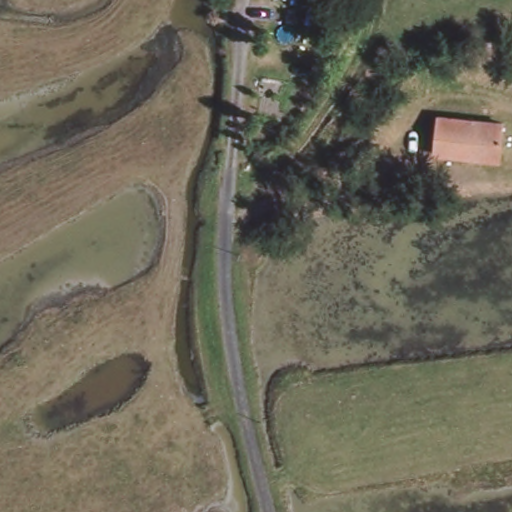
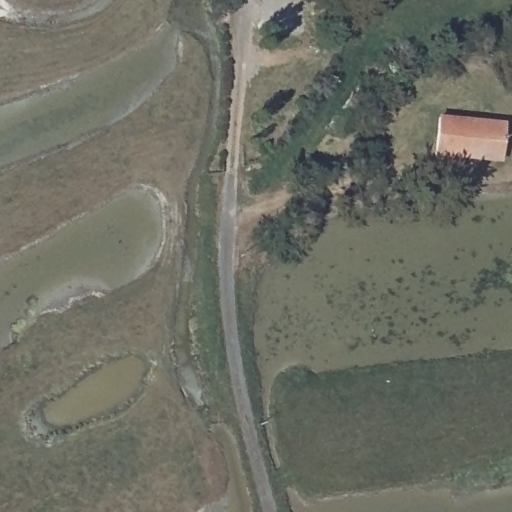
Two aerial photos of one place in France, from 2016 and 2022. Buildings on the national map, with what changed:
unchanged [(504,126),(496,166),(431,155),(438,117),(504,126)]

